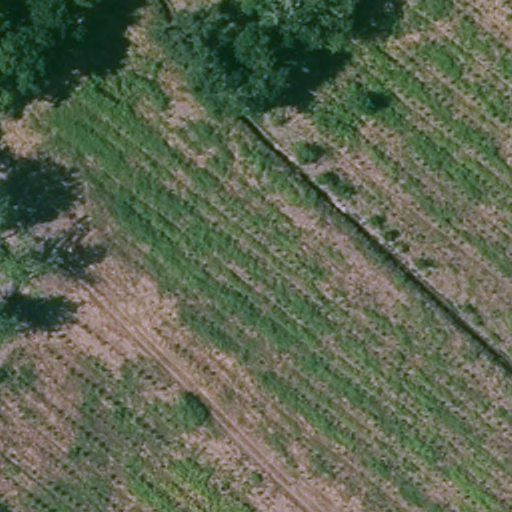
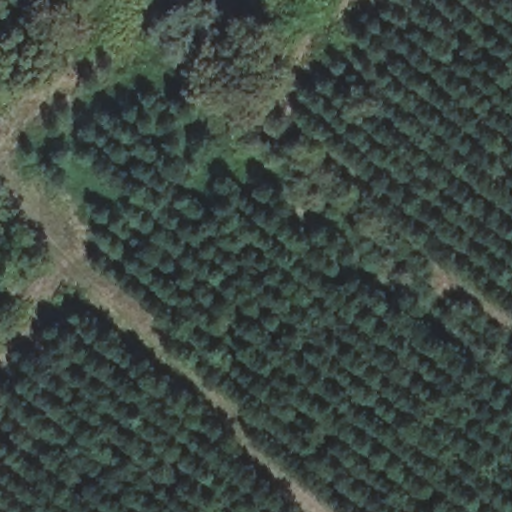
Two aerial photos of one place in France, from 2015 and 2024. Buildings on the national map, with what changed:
[]

